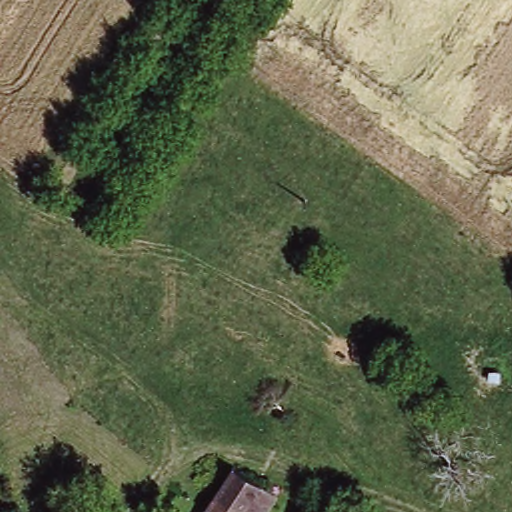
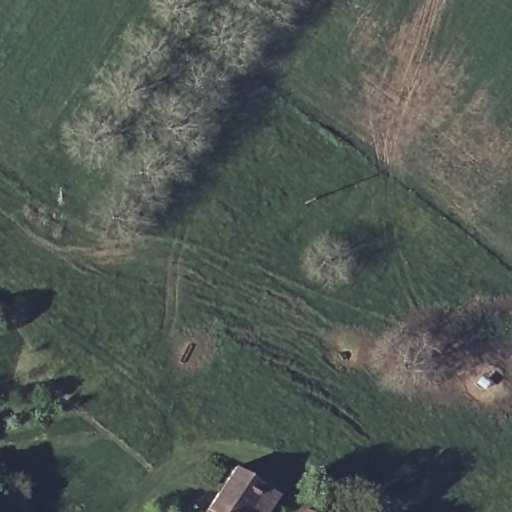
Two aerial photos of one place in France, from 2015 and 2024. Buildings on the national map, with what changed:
unchanged [(232,465),(274,492),(261,512),(201,512),(232,465)]
unchanged [(303,508),(312,512),(301,512),(303,508)]

